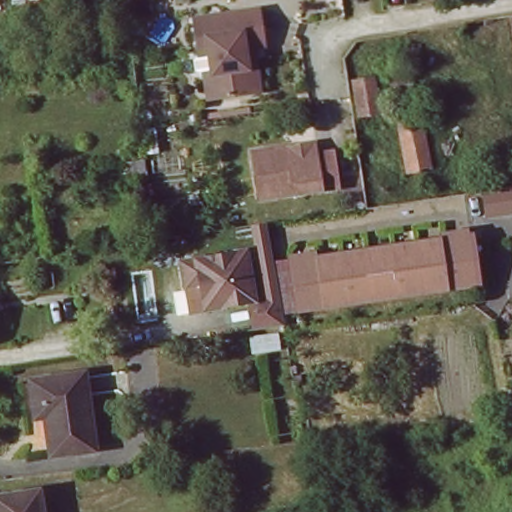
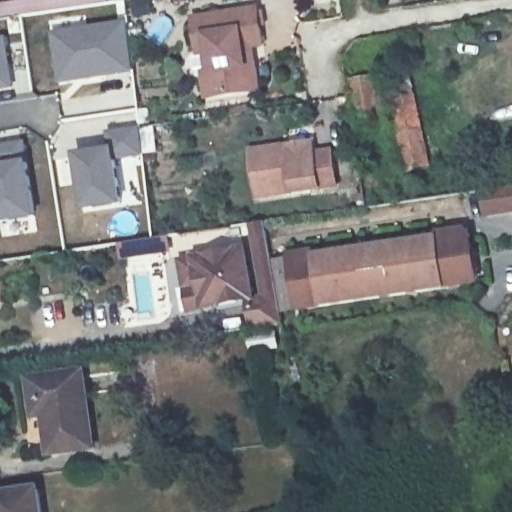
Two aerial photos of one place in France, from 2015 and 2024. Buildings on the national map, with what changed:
new [(110,0),(111,5),(0,21),(0,5),(33,0),(110,0)]
unchanged [(255,91),(247,92),(205,99),(202,74),(209,72),(207,56),(206,53),(196,54),(191,20),(256,10),(261,45),(249,47),(249,49),(255,91)]
new [(129,20),(136,72),(60,85),(52,30),(129,20)]
new [(9,35),(17,89),(0,92),(0,36),(9,35)]
unchanged [(409,172),(392,99),(386,70),(414,65),(420,94),(437,167),(409,172)]
unchanged [(377,74),(382,107),(359,110),(355,77),(377,74)]
new [(142,127),(139,109),(152,107),(158,152),(120,162),(115,146),(112,146),(112,144),(109,145),(108,131),(142,127)]
unchanged [(325,138),(327,150),(344,147),(349,182),(271,194),(264,147),(299,142),(325,138)]
new [(27,139),(40,217),(0,224),(0,143),(27,139)]
new [(112,146),(115,146),(120,162),(125,206),(84,211),(76,152),(112,146)]
unchanged [(489,221),(488,197),(512,194),(512,217),(489,221)]
unchanged [(287,327),(252,332),(250,312),(209,315),(205,278),(193,278),(191,262),(259,250),(257,231),(271,229),(287,327)]
unchanged [(489,283),(312,309),(292,312),(283,263),(284,263),(303,260),(480,234),(489,283)]
unchanged [(81,372),(91,447),(47,455),(40,406),(30,407),(27,381),(81,372)]
unchanged [(35,487),(39,512),(0,512),(0,493),(35,487)]

